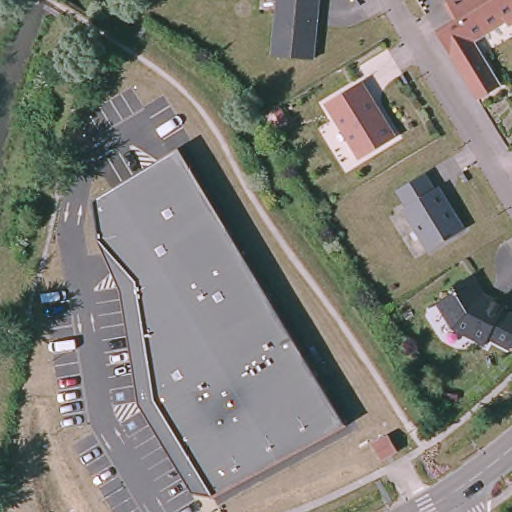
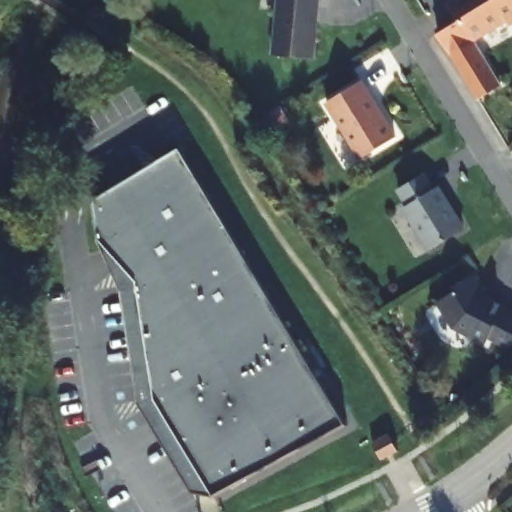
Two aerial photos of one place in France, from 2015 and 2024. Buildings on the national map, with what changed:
unchanged [(313,59),(272,55),(278,0),(319,0),(313,59)]
unchanged [(509,24),(506,20),(473,41),(501,85),(478,100),(475,94),(462,72),(437,33),(459,20),(446,0),(512,0),(512,22),(509,24)]
unchanged [(396,137),(361,159),(326,102),(361,81),(396,137)]
unchanged [(346,426),(214,498),(194,492),(141,405),(122,286),(99,244),(91,197),(180,147),(346,426)]
unchanged [(433,188),(437,186),(452,210),(464,229),(430,250),(423,238),(403,207),(407,204),(397,189),(424,173),(433,188)]
unchanged [(455,325),(439,301),(457,289),(455,284),(471,274),(484,294),(506,305),(503,309),(512,314),(512,345),(511,348),(490,337),(486,343),(455,325)]
unchanged [(397,450),(381,459),(371,443),(388,433),(397,450)]

